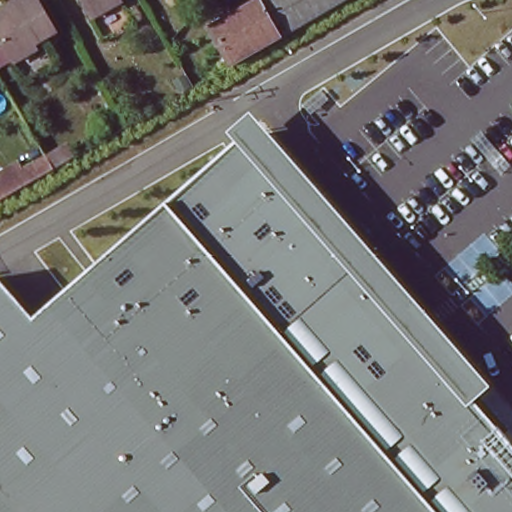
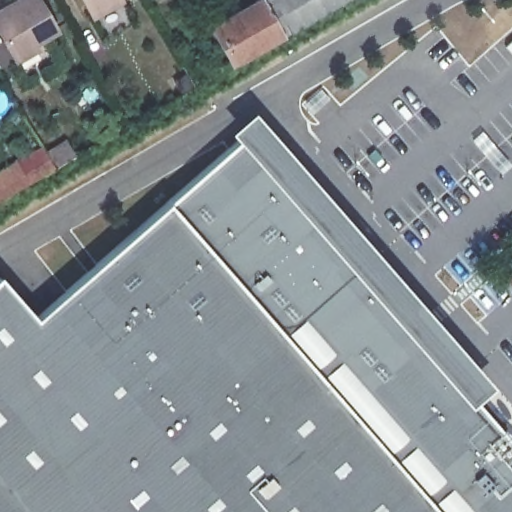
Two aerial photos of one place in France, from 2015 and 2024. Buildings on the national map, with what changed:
unchanged [(42,0),(60,31),(38,44),(41,49),(19,61),(0,29),(0,11),(19,0),(42,0)]
unchanged [(85,0),(119,0),(94,15),(85,0)]
unchanged [(230,68),(208,26),(252,0),(260,0),(282,38),(230,68)]
unchanged [(282,38),(260,0),(347,0),(301,26),(282,38)]
unchanged [(237,144),(227,133),(252,114),(489,388),(473,404),(512,449),(512,512),(434,512),(167,208),(237,144)]
unchanged [(63,165),(0,201),(0,181),(54,150),(63,165)]
unchanged [(38,326),(167,208),(434,512),(0,512),(0,289),(38,326)]

